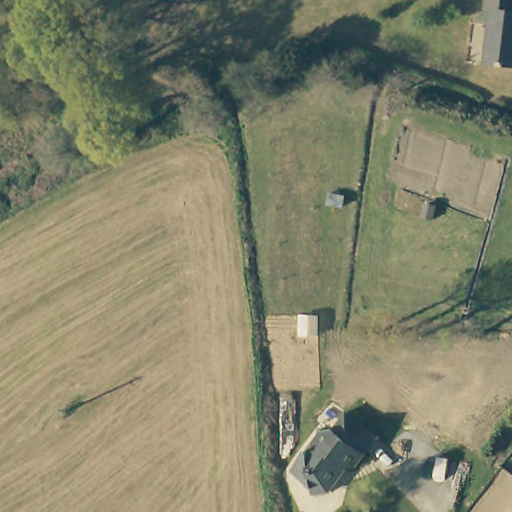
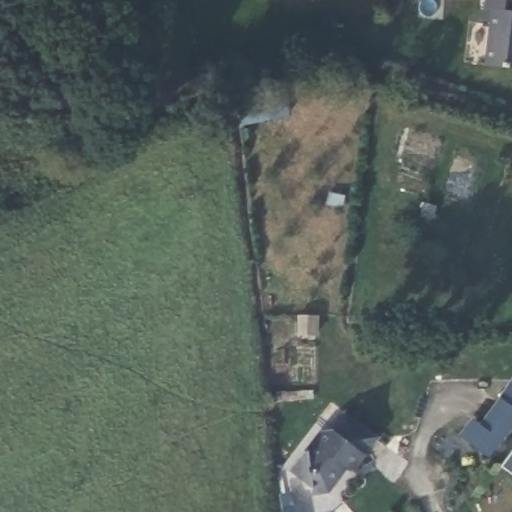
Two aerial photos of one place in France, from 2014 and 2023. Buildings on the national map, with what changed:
unchanged [(486,0),(512,0),(512,69),(485,65),(492,12),(485,11),(486,0)]
new [(472,415),(481,421),(511,375),(512,376),(512,427),(490,458),(457,436),(472,415)]
unchanged [(316,494),(317,486),(296,471),(297,462),(326,431),(335,430),(350,412),(383,436),(357,469),(351,470),(332,492),(316,494)]
new [(512,450),(512,473),(502,465),(512,450)]

